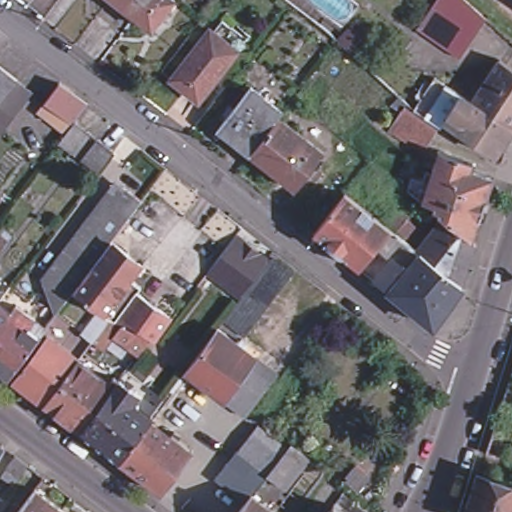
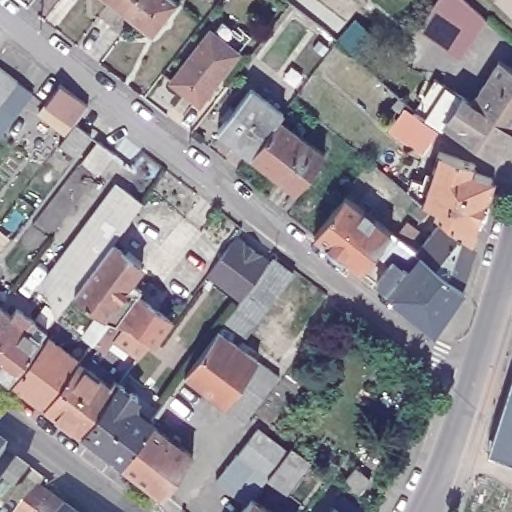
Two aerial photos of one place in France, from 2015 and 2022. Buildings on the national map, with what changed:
unchanged [(124,5),(119,0),(174,0),(152,27),(124,5)]
unchanged [(417,29),(432,7),(437,0),(466,0),(470,2),(492,19),(476,40),(462,60),(440,45),(417,29)]
unchanged [(207,31),(236,52),(198,102),(170,80),(207,31)]
unchanged [(512,76),(512,132),(510,136),(467,108),(495,65),(512,76)]
unchanged [(30,88),(12,112),(0,127),(0,66),(17,79),(30,88)]
unchanged [(67,125),(40,104),(46,96),(60,78),(87,99),(86,100),(75,115),(90,127),(71,152),(56,140),(67,125)]
unchanged [(438,132),(435,130),(410,115),(430,85),(453,100),(437,125),(441,127),(438,132)]
unchanged [(253,86),(285,111),(281,116),(326,151),(298,187),(253,154),(220,129),(253,86)]
unchanged [(467,109),(510,136),(493,161),(441,127),(437,125),(453,100),(467,109)]
unchanged [(407,112),(410,115),(435,130),(417,159),(385,136),(403,109),(407,112)]
unchanged [(78,159),(97,133),(113,146),(95,170),(78,159)]
unchanged [(471,167),(469,174),(494,182),(472,249),(436,220),(430,215),(432,209),(419,205),(420,202),(410,199),(405,198),(406,196),(410,186),(423,191),(435,155),(471,167)]
unchanged [(72,292),(61,307),(43,281),(74,241),(82,230),(95,214),(116,186),(140,204),(118,231),(112,240),(143,264),(134,276),(140,281),(135,289),(172,317),(156,338),(141,358),(112,337),(126,320),(103,315),(93,308),(72,292)]
unchanged [(457,288),(430,327),(370,281),(357,272),(311,238),(314,235),(342,199),(359,212),(353,220),(364,227),(370,220),(388,235),(400,244),(411,252),(457,288)]
unchanged [(472,249),(459,290),(457,288),(411,252),(436,220),(472,249)]
unchanged [(235,235),(269,260),(272,256),(294,273),(248,335),(227,317),(226,317),(241,297),(207,272),(235,235)]
unchanged [(15,305),(35,320),(28,327),(40,336),(8,377),(0,371),(0,307),(10,315),(15,305)]
unchanged [(256,359),(225,402),(203,386),(185,372),(191,364),(216,330),(256,359)]
unchanged [(46,333),(74,354),(40,400),(12,380),(46,333)]
unchanged [(82,432),(40,400),(74,354),(80,358),(117,386),(82,432)]
unchanged [(259,393),(242,415),(225,402),(256,359),(274,372),(259,393)]
unchanged [(177,421),(171,417),(168,421),(155,427),(149,421),(150,420),(182,376),(185,372),(203,386),(177,421)]
unchanged [(117,386),(121,381),(137,394),(132,400),(140,406),(136,410),(150,420),(149,421),(120,460),(82,432),(117,386)]
new [(506,387),(512,389),(512,460),(485,452),(506,387)]
new [(489,462),(512,389),(512,470),(489,462)]
unchanged [(120,460),(149,421),(155,427),(191,453),(162,492),(120,460)]
unchanged [(252,425),(286,451),(267,477),(232,450),(252,425)]
unchanged [(0,450),(0,441),(4,445),(0,450)]
unchanged [(292,445),(310,458),(285,491),(268,477),(292,445)]
unchanged [(3,474),(15,457),(27,466),(15,483),(3,474)]
unchanged [(475,474),(512,486),(512,512),(463,512),(475,474)]
unchanged [(35,485),(63,506),(70,512),(15,512),(35,485)]
unchanged [(332,510),(342,497),(362,512),(331,512),(332,510)]
unchanged [(255,501),(269,512),(247,512),(255,501)]

